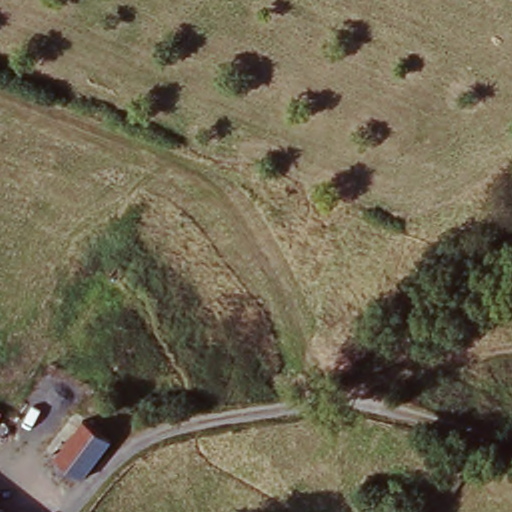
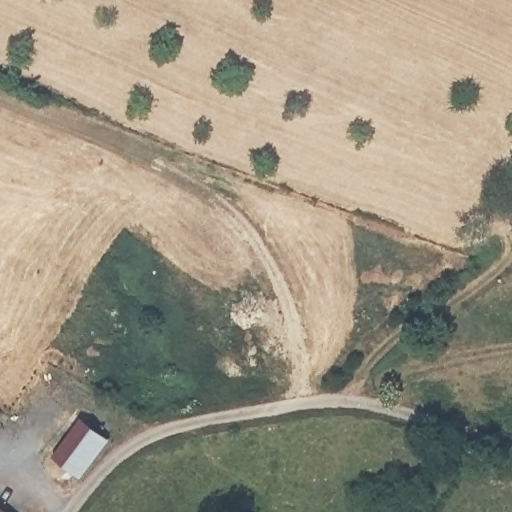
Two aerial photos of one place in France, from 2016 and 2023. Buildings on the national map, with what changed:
unchanged [(62,463),(89,425),(117,445),(106,460),(89,482),(62,463)]

